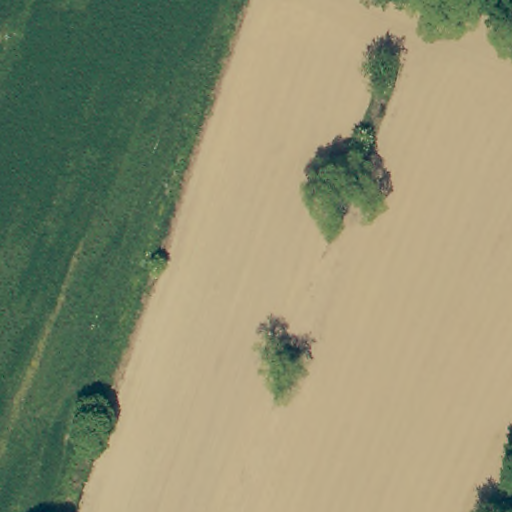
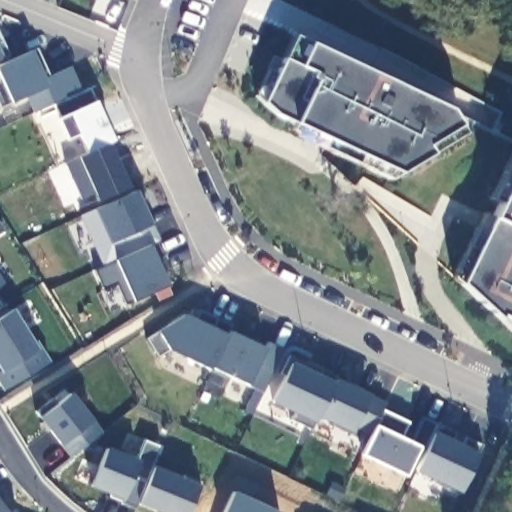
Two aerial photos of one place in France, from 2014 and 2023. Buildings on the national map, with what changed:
new [(121,3),(114,0),(122,0),(121,3)]
new [(4,59),(0,61),(0,35),(10,55),(4,59)]
new [(449,109),(457,125),(463,133),(428,150),(430,153),(400,172),(296,124),(276,114),(265,102),(257,96),(270,70),(278,74),(285,60),(296,36),(310,43),(449,109)]
new [(80,135),(68,140),(59,120),(55,104),(34,113),(25,97),(12,102),(1,107),(0,105),(0,80),(2,80),(0,76),(0,66),(31,52),(37,49),(50,77),(70,68),(82,92),(89,89),(96,101),(114,140),(88,154),(80,135)]
new [(498,318),(461,284),(451,280),(449,275),(479,212),(490,224),(493,218),(501,203),(492,199),(512,157),(512,330),(498,318)]
new [(152,246),(119,261),(96,270),(77,215),(132,191),(160,242),(152,246)]
new [(127,305),(117,283),(105,290),(96,270),(119,261),(152,246),(160,242),(166,255),(157,260),(169,285),(127,305)]
new [(0,285),(0,283),(1,285),(0,285)]
new [(0,309),(0,303),(2,307),(0,309)]
new [(266,392),(250,385),(212,368),(211,370),(171,351),(160,355),(146,338),(160,331),(188,314),(193,308),(200,312),(201,310),(232,326),(231,328),(231,331),(267,348),(270,342),(285,350),(266,392)]
new [(0,384),(0,372),(1,371),(0,369),(0,317),(12,310),(34,343),(36,341),(50,362),(4,390),(0,384)]
new [(372,435),(356,426),(353,433),(318,417),(315,422),(312,429),(293,421),(295,413),(273,402),(286,375),(282,373),(290,356),(310,365),(306,368),(336,383),(338,380),(372,396),(388,403),(372,435)]
new [(35,411),(52,398),(57,404),(70,393),(101,433),(71,456),(35,411)]
new [(462,493),(416,472),(435,431),(439,423),(458,433),(452,440),(462,444),(467,438),(483,445),(479,454),(462,493)]
new [(121,503),(124,498),(91,485),(107,448),(136,460),(145,439),(162,446),(136,510),(121,503)]
new [(185,475),(201,482),(189,512),(158,512),(139,504),(154,467),(183,479),(185,475)]
new [(0,512),(0,510),(1,512),(0,512)]

